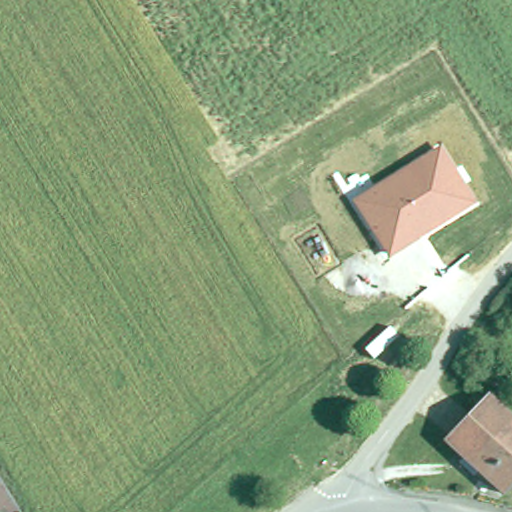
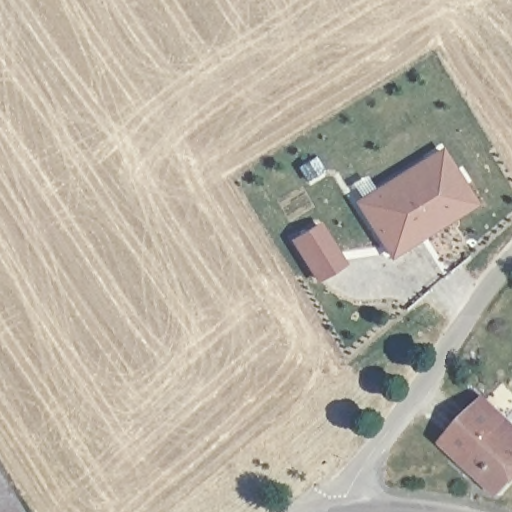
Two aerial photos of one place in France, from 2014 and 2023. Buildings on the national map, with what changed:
unchanged [(477,205),(390,257),(352,202),(440,148),(477,205)]
new [(345,263),(316,281),(289,238),(319,220),(345,263)]
unchanged [(460,460),(444,444),(486,400),(512,425),(512,485),(502,497),(475,473),(471,479),(456,465),(460,460)]
unchanged [(20,512),(0,512),(0,478),(20,512)]

